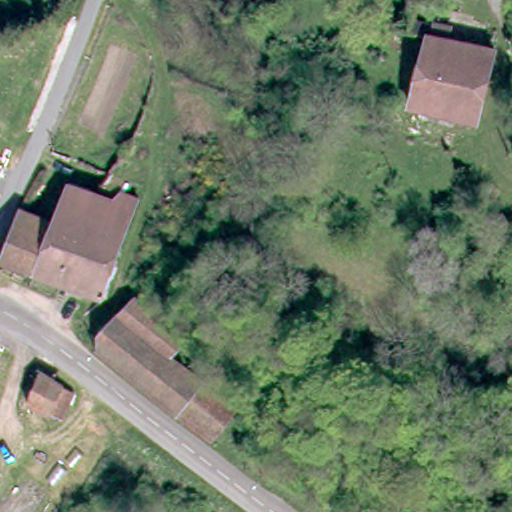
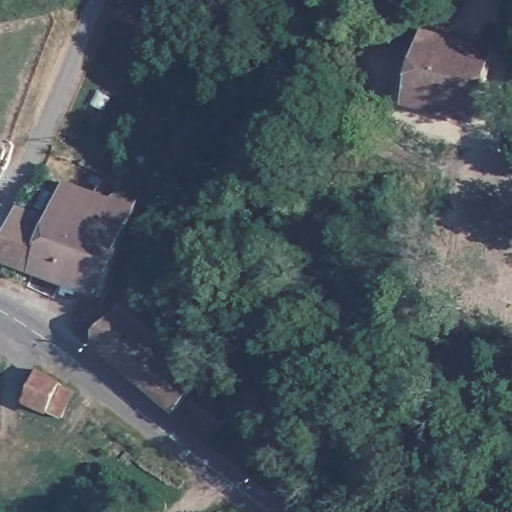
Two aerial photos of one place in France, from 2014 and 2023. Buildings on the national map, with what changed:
unchanged [(457,29),(453,41),(492,52),(480,87),(465,129),(410,108),(431,45),(436,22),(457,29)]
unchanged [(140,199),(105,294),(102,296),(80,288),(77,295),(65,290),(67,283),(5,260),(25,207),(57,220),(70,183),(115,200),(119,191),(140,199)]
unchanged [(235,412),(213,438),(102,347),(102,328),(137,294),(220,362),(202,383),(235,412)]
unchanged [(30,401),(45,371),(67,384),(79,390),(63,420),(51,413),(30,401)]

